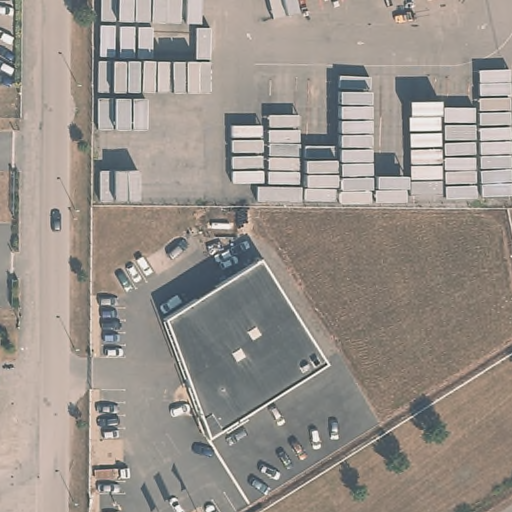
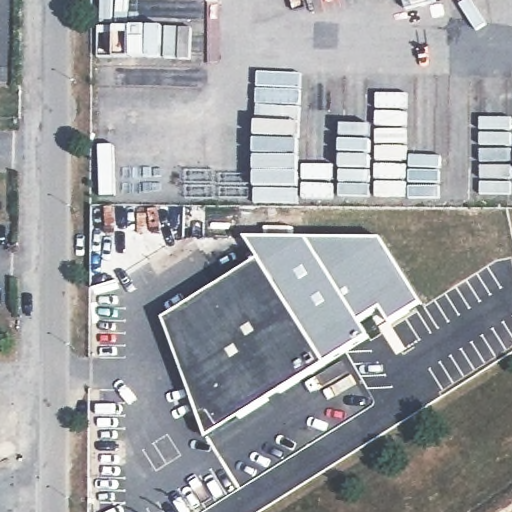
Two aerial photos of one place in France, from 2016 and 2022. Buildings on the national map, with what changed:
new [(244,238),(379,238),(420,302),(389,322),(381,308),(358,322),(368,337),(331,357),(264,252),(256,257),(244,238)]
unchanged [(331,357),(212,432),(168,313),(264,252),(331,357)]

